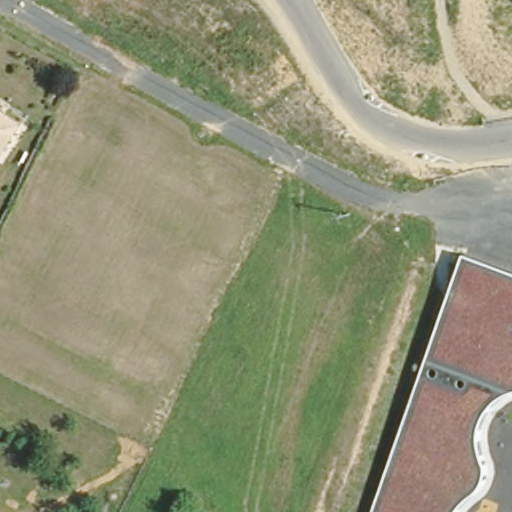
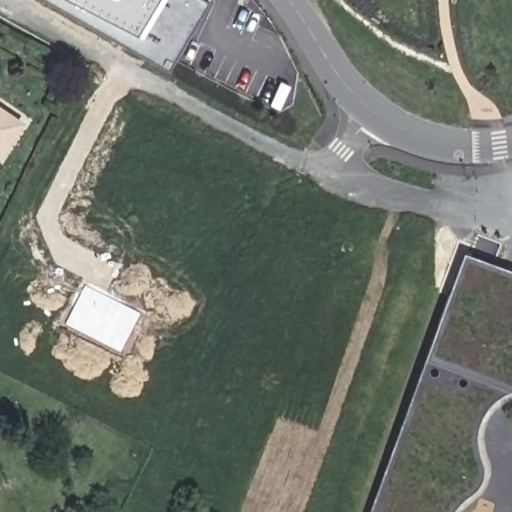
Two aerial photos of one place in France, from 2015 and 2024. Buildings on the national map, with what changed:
new [(137,35),(158,0),(204,0),(210,4),(168,72),(43,0),(69,0),(137,35)]
new [(69,0),(158,0),(137,35),(69,0)]
unchanged [(0,149),(0,103),(22,119),(0,149)]
unchanged [(510,393),(498,400),(487,410),(480,421),(477,437),(477,448),(480,459),(484,469),(485,477),(482,486),(474,495),(462,504),(456,512),(372,512),(465,255),(512,271),(512,392),(510,393)]
new [(141,314),(121,353),(66,325),(85,286),(141,314)]

